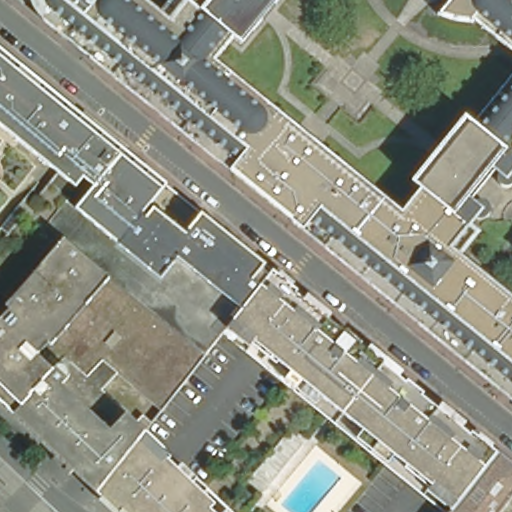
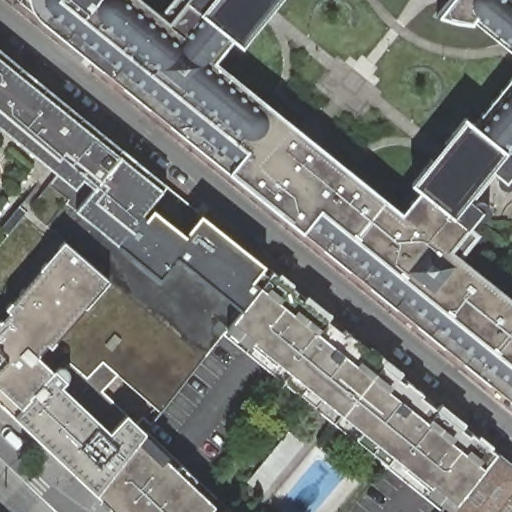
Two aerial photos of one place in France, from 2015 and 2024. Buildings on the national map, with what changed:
unchanged [(38,11),(35,7),(33,2),(32,0),(93,0),(85,9),(65,34),(42,15),(38,11)]
unchanged [(93,0),(148,0),(162,11),(171,0),(275,0),(262,15),(255,25),(254,25),(253,25),(241,40),(233,33),(216,55),(280,109),(337,154),(402,206),(420,185),(413,179),(424,164),(423,163),(424,162),(431,153),(445,136),(452,127),(453,126),(454,127),(466,113),(473,119),(512,71),(512,179),(509,180),(505,180),(502,179),(499,176),(498,172),(498,169),(489,161),(483,168),(470,185),(464,192),(473,200),(477,197),(481,196),(485,197),(488,200),(490,205),(489,209),(486,212),(482,215),(478,215),(474,212),(467,221),(474,227),(455,250),(512,295),(512,395),(489,376),(483,372),(475,366),(425,325),(411,314),(369,280),(331,250),(293,219),(179,126),(141,95),(109,69),(103,65),(65,34),(85,9),(93,0)]
unchanged [(470,17),(468,17),(466,17),(464,17),(462,16),(460,16),(458,16),(456,15),(454,15),(452,15),(451,14),(449,14),(447,13),(445,12),(443,12),(441,11),(439,10),(438,10),(446,0),(512,0),(512,46),(473,15),(470,17)]
unchanged [(0,395),(0,49),(17,63),(166,185),(47,335),(0,395)]
unchanged [(199,210),(196,215),(226,239),(229,235),(272,270),(242,308),(241,309),(238,313),(223,332),(167,402),(167,403),(146,430),(102,485),(96,493),(34,434),(27,428),(0,402),(0,395),(47,335),(166,185),(199,210)]
unchanged [(291,285),(292,286),(293,287),(310,300),(312,302),(324,311),(325,312),(329,316),(327,319),(333,324),(334,325),(335,326),(335,328),(335,330),(335,332),(334,334),(334,335),(338,337),(345,329),(406,379),(408,380),(423,392),(416,401),(420,404),(420,403),(421,403),(422,402),(423,401),(425,401),(427,401),(428,401),(429,402),(430,403),(436,408),(438,405),(469,430),(498,453),(491,462),(466,493),(461,500),(451,512),(444,512),(357,442),(263,365),(243,349),(223,332),(238,313),(241,309),(242,308),(272,270),(291,285)]
unchanged [(102,485),(146,430),(232,512),(116,512),(96,493),(102,485)]
unchanged [(288,433),(302,444),(263,490),(250,480),(288,433)]
unchanged [(461,500),(466,493),(491,462),(498,453),(512,465),(512,494),(498,512),(451,512),(461,500)]

